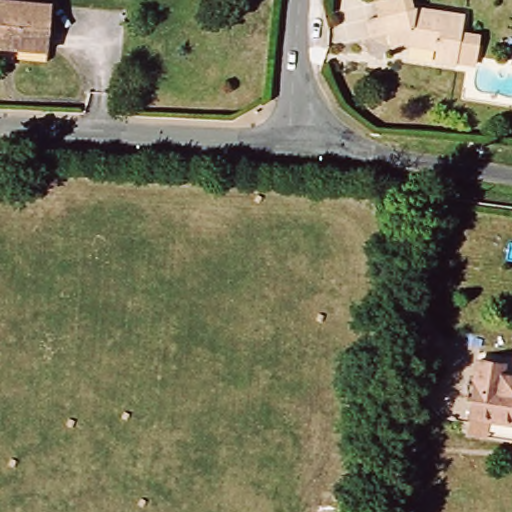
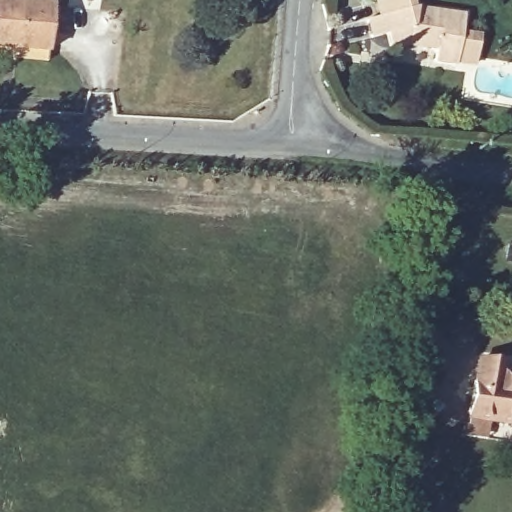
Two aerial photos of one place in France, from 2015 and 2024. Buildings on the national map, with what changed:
unchanged [(0,54),(0,0),(50,0),(44,59),(0,54)]
unchanged [(459,67),(459,70),(434,68),(434,56),(412,50),(395,55),(390,35),(374,39),(370,21),(382,18),(378,1),(384,0),(409,0),(412,10),(466,16),(463,38),(481,41),(478,69),(459,67)]
unchanged [(471,377),(476,355),(508,361),(506,372),(512,373),(512,424),(467,415),(474,378),(471,377)]

